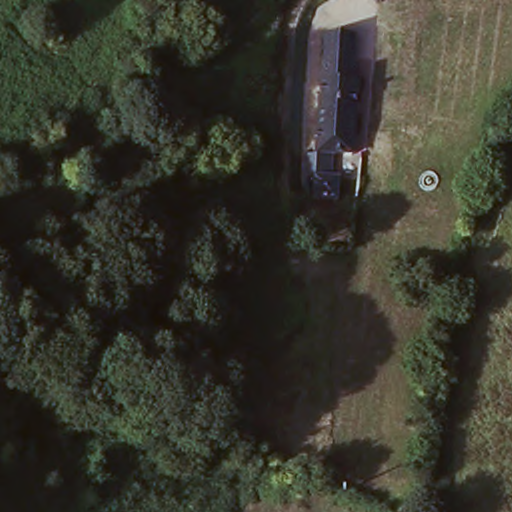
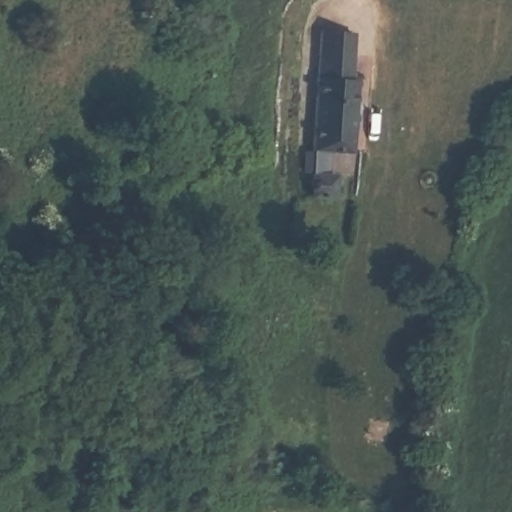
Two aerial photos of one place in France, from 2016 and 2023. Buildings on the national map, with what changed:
unchanged [(328,148),(327,171),(335,173),(334,195),(309,194),(317,26),(350,29),(348,74),(356,78),(352,148),(328,148)]

